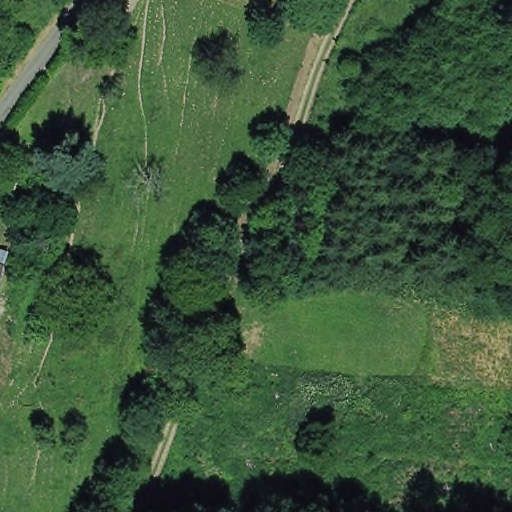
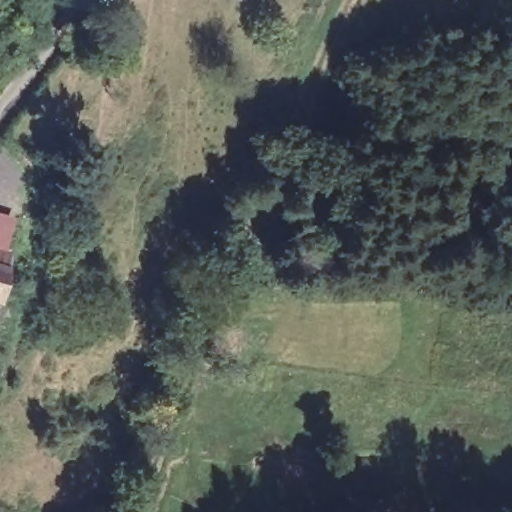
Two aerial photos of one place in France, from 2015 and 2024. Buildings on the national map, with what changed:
new [(5,250),(0,249),(0,213),(14,217),(5,250)]
unchanged [(16,260),(3,303),(0,302),(0,255),(16,260)]

